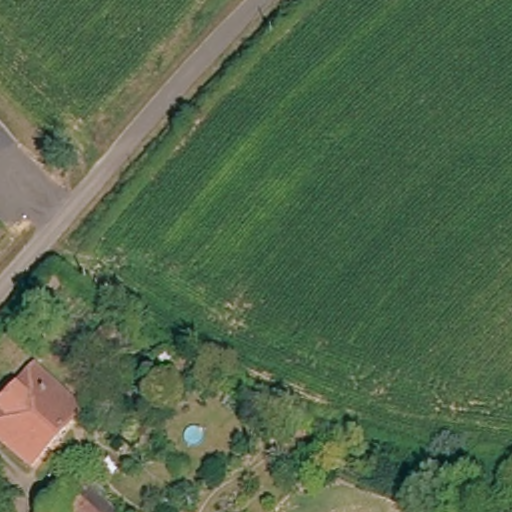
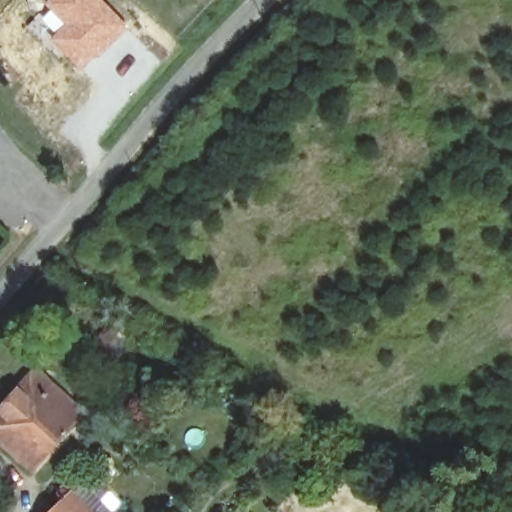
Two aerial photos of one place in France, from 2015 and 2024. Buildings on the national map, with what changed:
new [(50,10),(45,4),(48,0),(104,0),(130,26),(80,71),(48,38),(53,32),(41,19),(50,10)]
unchanged [(45,469),(0,436),(0,417),(35,368),(90,411),(45,469)]
unchanged [(48,512),(85,479),(120,512),(48,512)]

